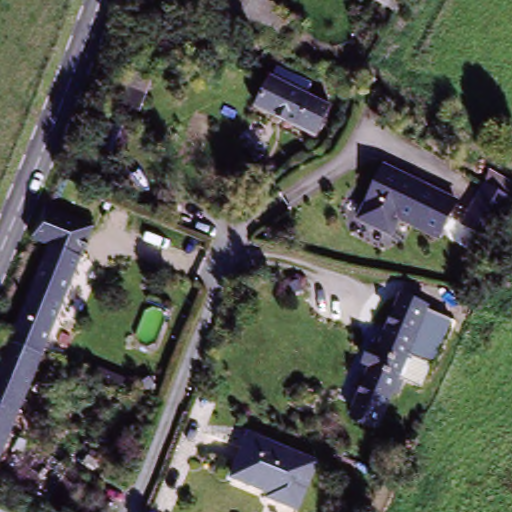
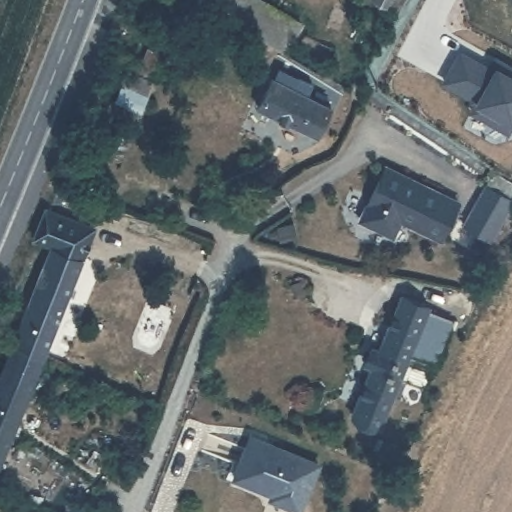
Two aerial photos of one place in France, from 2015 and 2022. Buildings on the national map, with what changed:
unchanged [(285,46),(205,0),(266,0),(301,21),(285,46)]
unchanged [(396,7),(384,0),(400,0),(396,7)]
unchanged [(117,95),(131,56),(144,61),(149,49),(164,55),(143,106),(117,95)]
new [(489,68),(493,71),(499,60),(512,67),(512,121),(507,131),(471,110),(476,102),(472,99),(473,97),(443,80),(460,52),(489,68)]
unchanged [(322,133),(261,104),(276,75),(336,104),(322,133)]
unchanged [(105,151),(116,126),(132,135),(121,159),(105,151)]
unchanged [(462,206),(444,242),(404,223),(396,239),(364,223),(390,171),(462,206)]
unchanged [(45,204),(95,224),(82,255),(53,243),(32,235),(32,234),(45,204)]
unchanged [(500,224),(489,219),(495,207),(506,213),(500,224)]
unchanged [(13,342),(53,243),(82,255),(42,354),(13,342)]
unchanged [(429,377),(403,366),(380,420),(352,408),(374,354),(367,352),(373,337),(380,341),(403,287),(431,298),(457,310),(429,377)]
unchanged [(0,457),(0,371),(13,342),(42,354),(0,457)]
unchanged [(317,457),(298,504),(269,492),(271,487),(233,472),(250,430),(317,457)]

